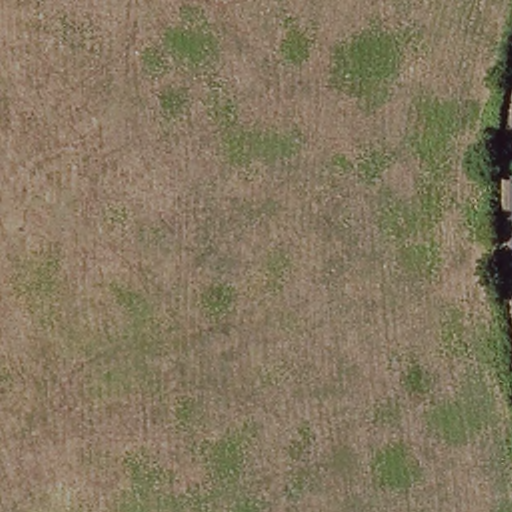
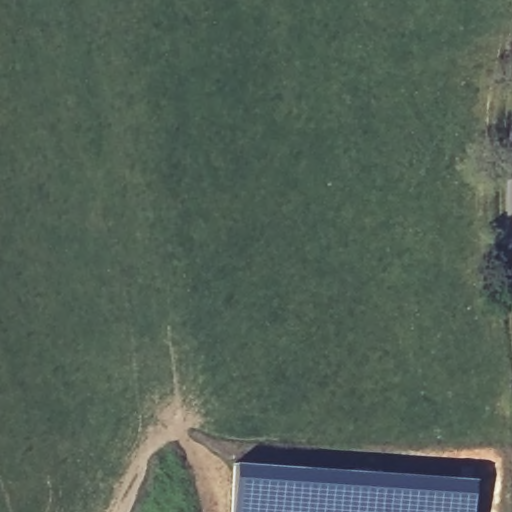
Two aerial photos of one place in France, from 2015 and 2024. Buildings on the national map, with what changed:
new [(471,481),(469,512),(228,512),(230,467),(471,481)]

